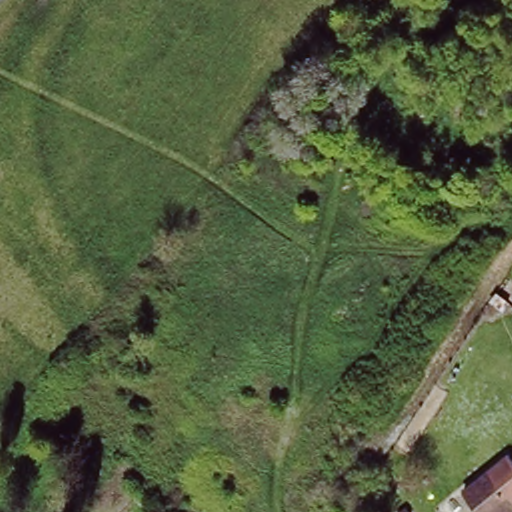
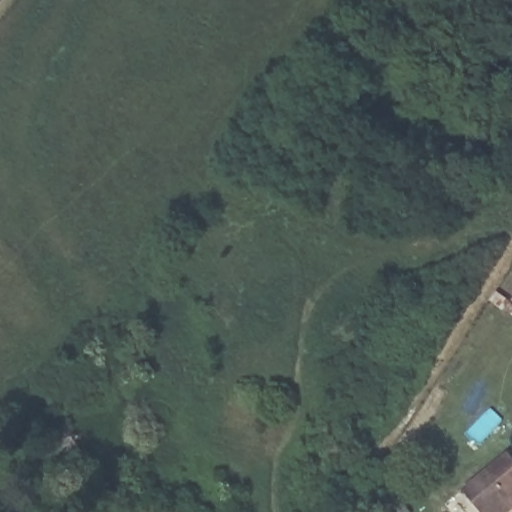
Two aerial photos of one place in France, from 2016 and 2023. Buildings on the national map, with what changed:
unchanged [(481,512),(459,483),(487,462),(506,448),(512,456),(512,510),(509,512),(481,512)]

